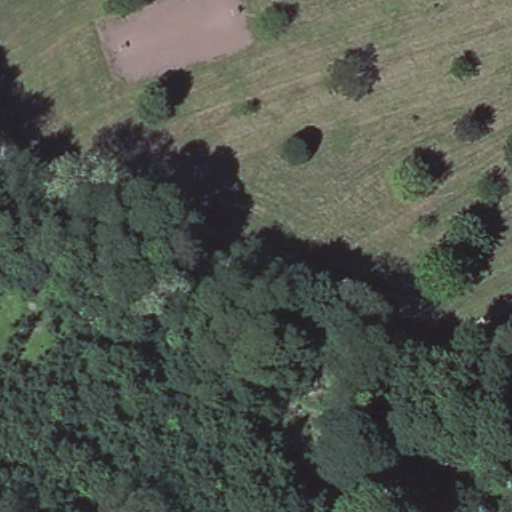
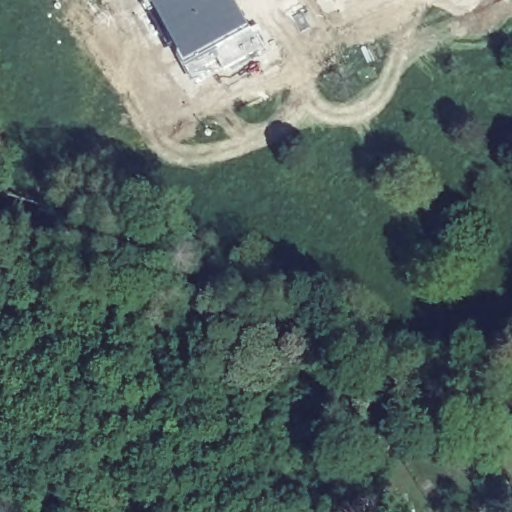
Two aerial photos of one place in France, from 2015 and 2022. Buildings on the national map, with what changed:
new [(254,41),(179,79),(132,0),(231,0),(254,41)]
new [(328,3),(327,0),(333,0),(328,3)]

